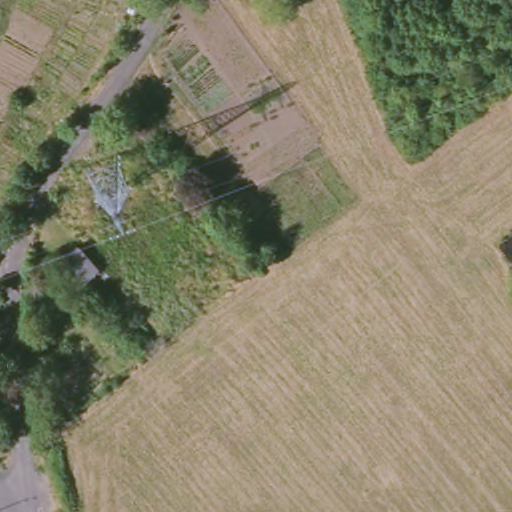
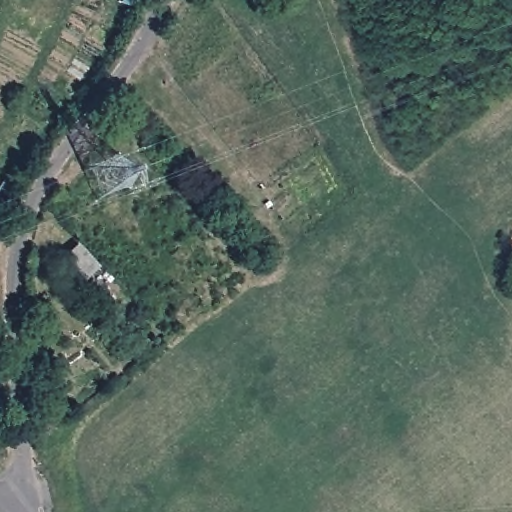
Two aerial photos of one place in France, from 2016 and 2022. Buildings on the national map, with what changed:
unchanged [(99,267),(81,283),(59,257),(78,242),(99,267)]

